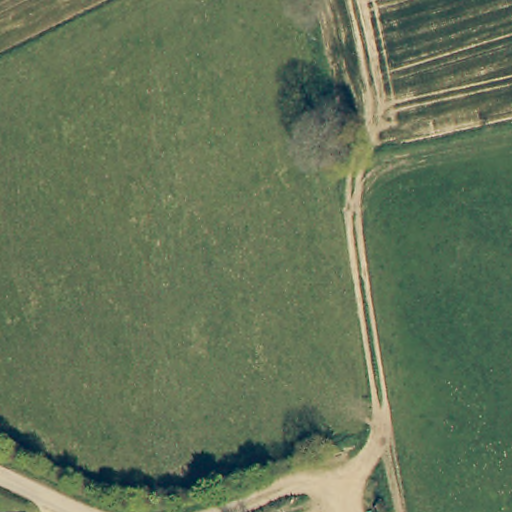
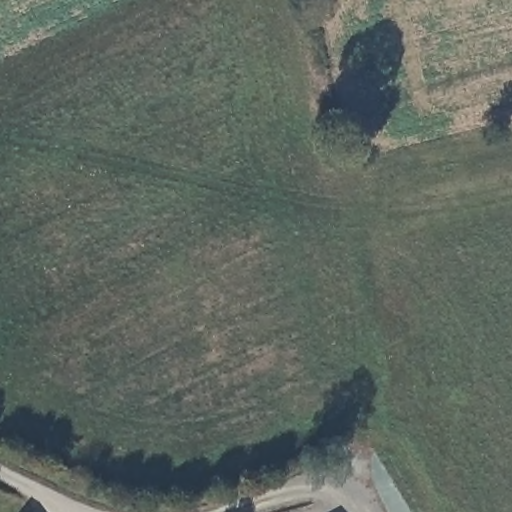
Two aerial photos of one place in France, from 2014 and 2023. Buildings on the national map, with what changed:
[]

